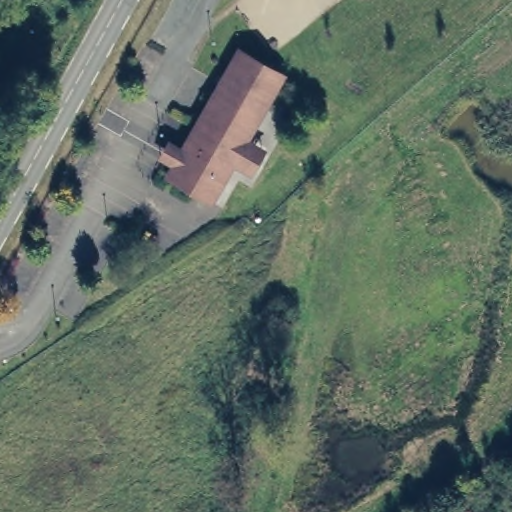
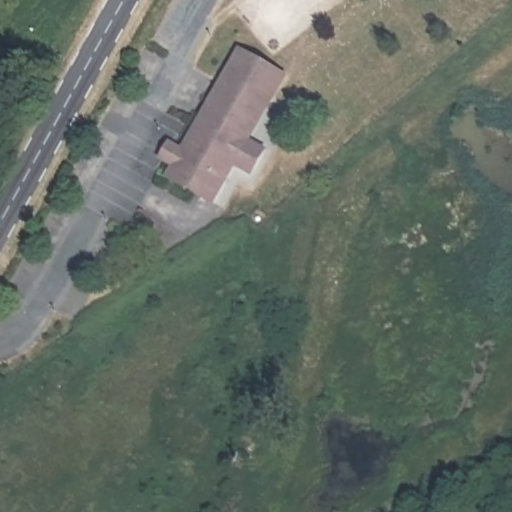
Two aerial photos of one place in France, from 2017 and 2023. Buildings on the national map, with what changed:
unchanged [(249,174),(231,165),(209,203),(166,179),(173,166),(159,159),(167,146),(180,153),(237,53),(281,77),(244,143),(261,152),(249,174)]

